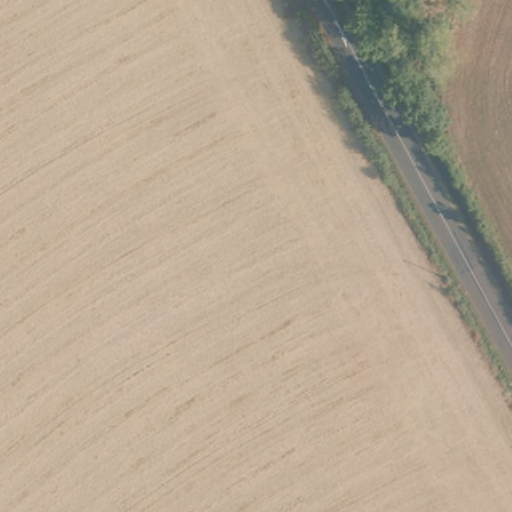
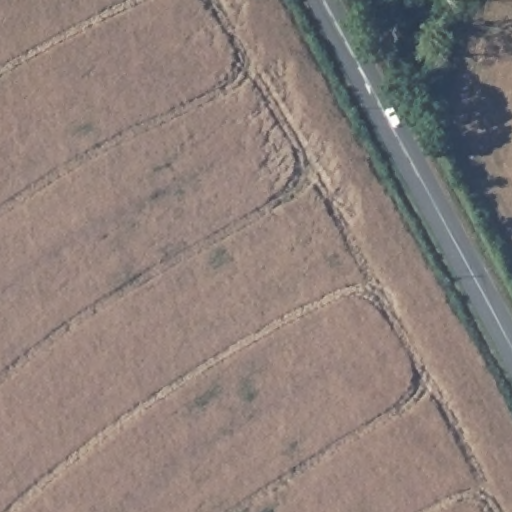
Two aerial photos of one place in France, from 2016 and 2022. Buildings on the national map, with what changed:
[]

